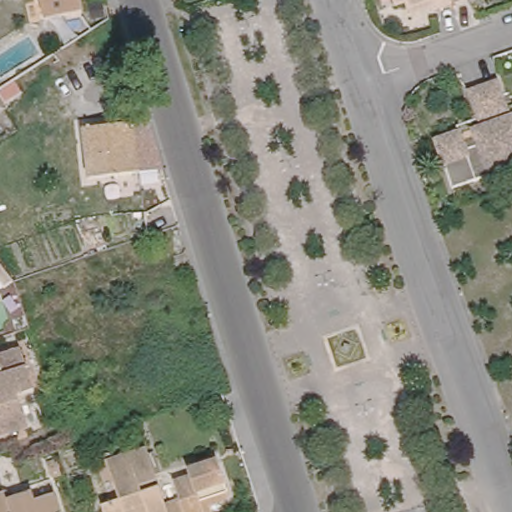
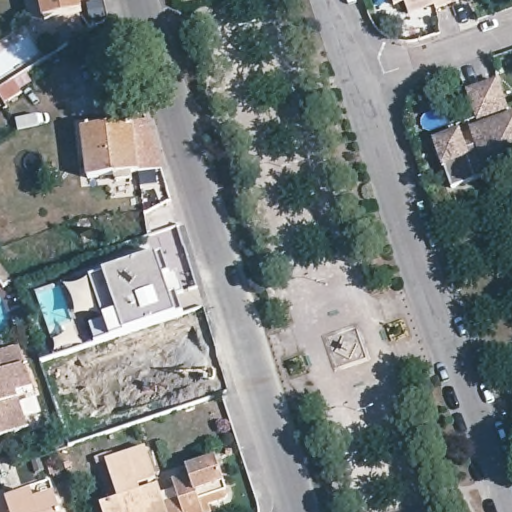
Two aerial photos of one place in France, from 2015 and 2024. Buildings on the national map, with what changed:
unchanged [(42,17),(38,0),(81,0),(83,8),(62,14),(63,21),(43,25),(42,17)]
unchanged [(395,2),(394,0),(402,0),(395,2)]
unchanged [(403,5),(402,0),(458,0),(452,2),(434,8),(433,2),(405,10),(403,5)]
unchanged [(474,91),(486,86),(501,81),(511,111),(497,115),(483,120),(474,91)]
unchanged [(499,123),(512,118),(512,160),(499,123)]
unchanged [(441,140),(464,132),(471,152),(482,149),(476,130),(499,123),(512,160),(512,168),(457,186),(441,140)]
unchanged [(87,182),(82,135),(132,129),(149,126),(161,172),(138,175),(87,182)]
demolished [(80,221),(102,213),(111,234),(101,239),(97,230),(85,235),(80,221)]
new [(90,274),(164,252),(181,313),(107,335),(90,274)]
unchanged [(21,345),(36,389),(19,395),(29,425),(0,434),(0,353),(21,345)]
unchanged [(148,440),(168,496),(173,512),(109,512),(104,497),(120,492),(119,487),(108,454),(148,440)]
unchanged [(198,512),(173,512),(168,496),(182,491),(176,475),(193,468),(191,461),(219,451),(231,485),(231,488),(230,491),(226,493),(212,498),(215,506),(208,508),(198,512)]
unchanged [(7,493),(9,500),(34,491),(37,500),(55,495),(62,512),(0,512),(0,495),(7,493)]

